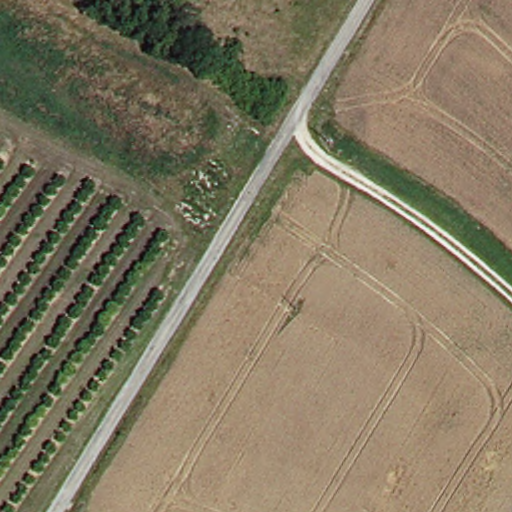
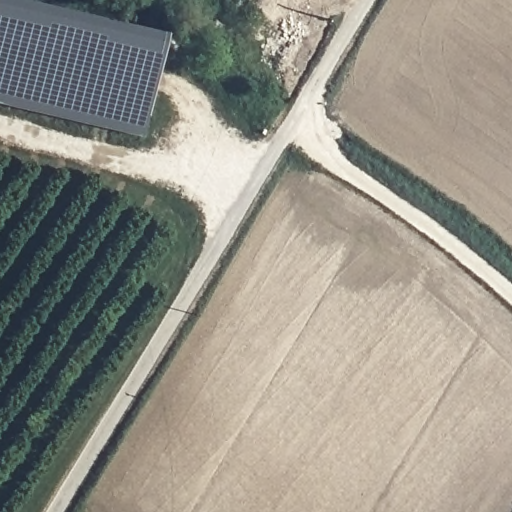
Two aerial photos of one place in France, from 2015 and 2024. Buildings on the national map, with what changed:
new [(154,116),(0,80),(0,0),(26,0),(172,33),(154,116)]
new [(147,137),(0,103),(0,80),(152,115),(147,137)]

